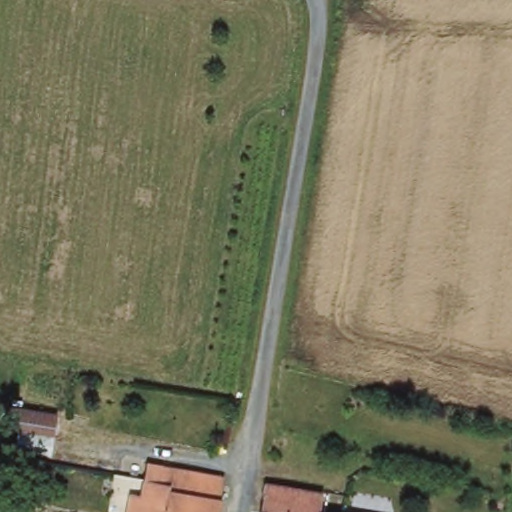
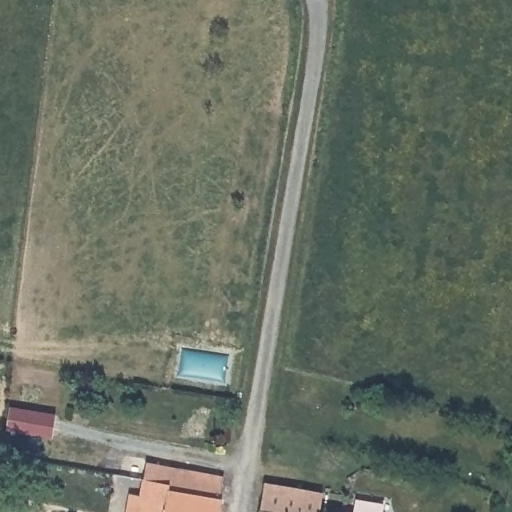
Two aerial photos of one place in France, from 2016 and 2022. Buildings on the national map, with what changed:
unchanged [(55,433),(10,427),(12,409),(58,415),(55,433)]
unchanged [(222,496),(225,496),(225,497),(222,512),(130,512),(135,487),(145,490),(147,476),(150,462),(226,476),(222,496)]
unchanged [(321,489),(320,490),(317,512),(320,512),(257,512),(258,508),(262,480),(321,489)]
unchanged [(345,508),(366,512),(345,512),(345,508)]

